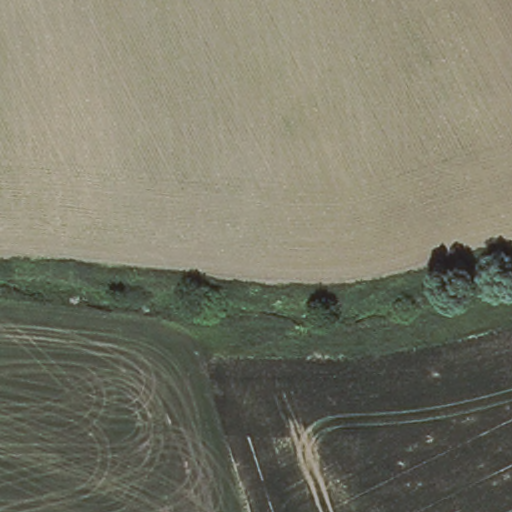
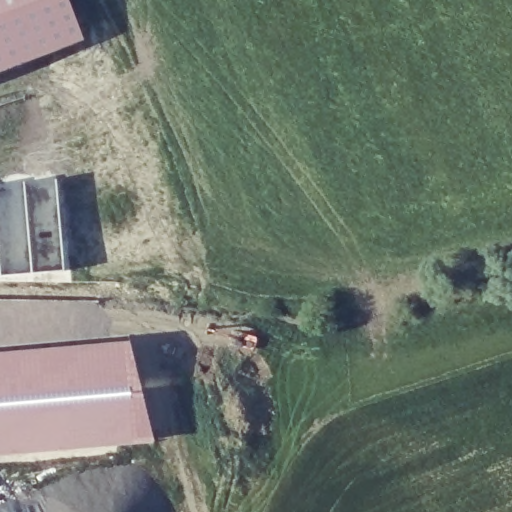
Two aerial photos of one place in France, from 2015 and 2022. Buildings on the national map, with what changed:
new [(0,70),(0,0),(73,0),(89,37),(0,70)]
new [(155,445),(0,458),(0,355),(130,344),(155,445)]

